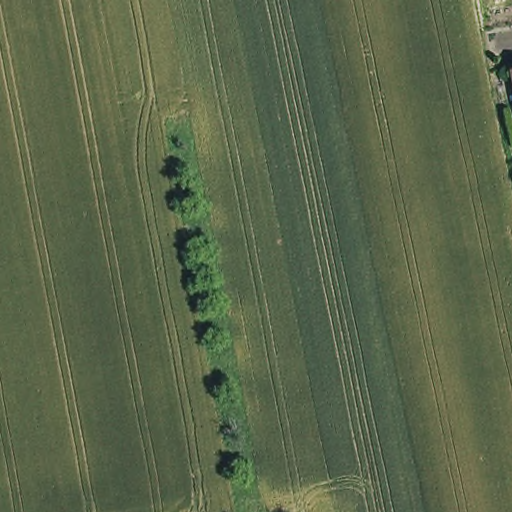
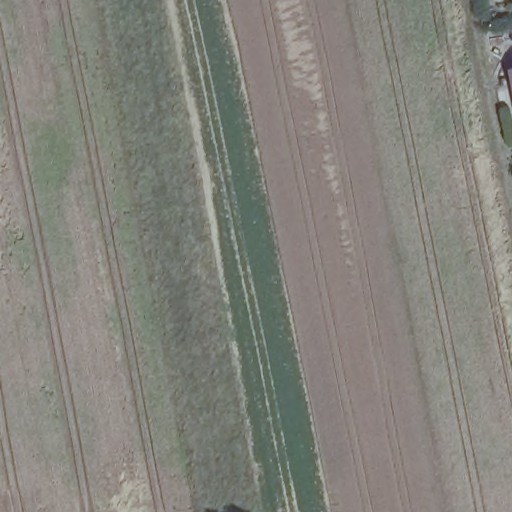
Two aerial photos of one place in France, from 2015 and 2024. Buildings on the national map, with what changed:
unchanged [(512,71),(512,94),(508,71),(512,71)]

